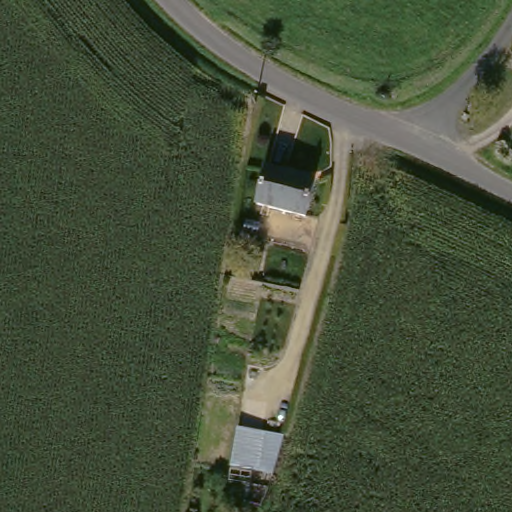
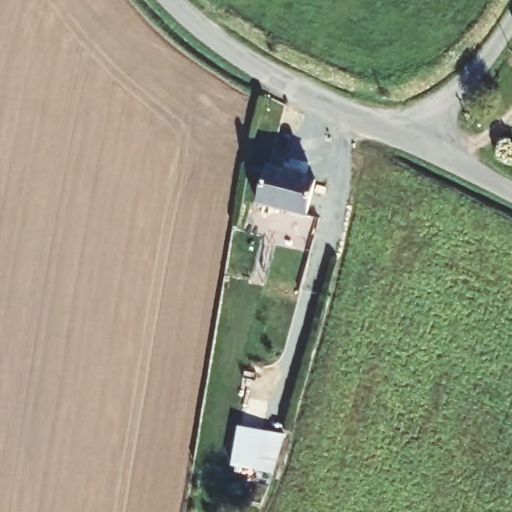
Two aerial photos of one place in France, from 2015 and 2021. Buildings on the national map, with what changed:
unchanged [(319,178),(310,215),(263,202),(272,165),(319,178)]
unchanged [(236,465),(242,423),(291,430),(281,470),(236,465)]

